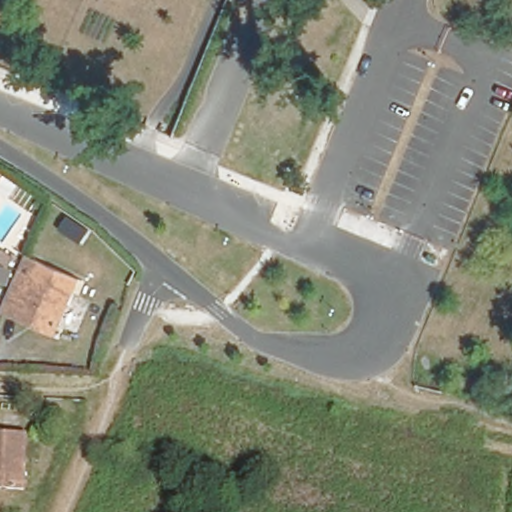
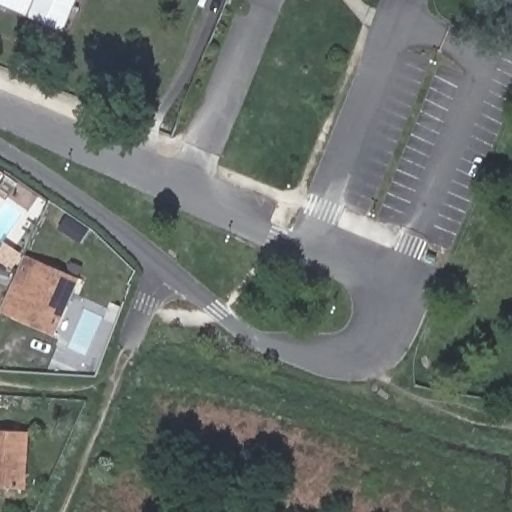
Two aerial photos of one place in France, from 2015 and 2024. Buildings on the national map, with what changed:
new [(0,5),(0,0),(71,0),(59,30),(0,5)]
unchanged [(28,244),(83,271),(54,329),(0,302),(15,271),(19,263),(28,244)]
unchanged [(0,482),(0,427),(25,429),(23,456),(21,466),(20,483),(0,482)]

